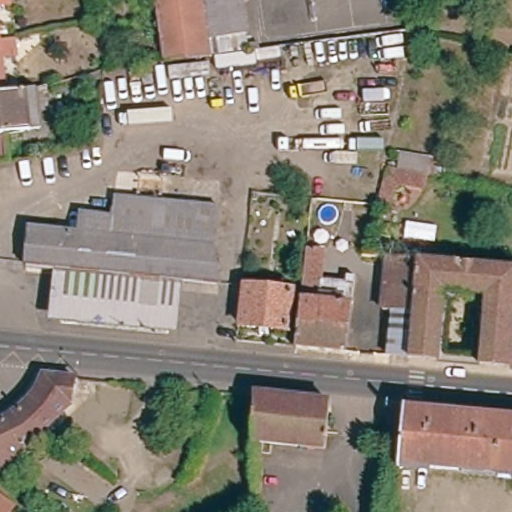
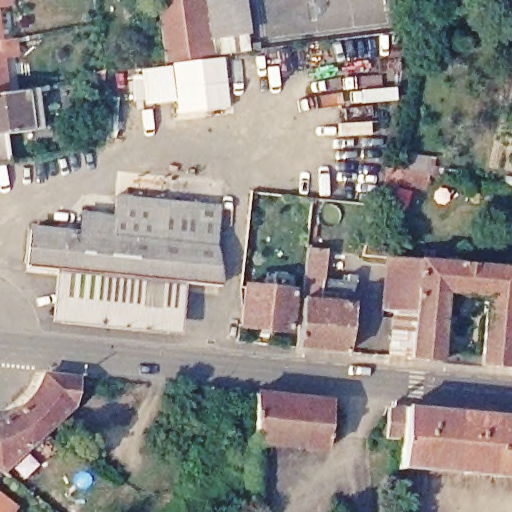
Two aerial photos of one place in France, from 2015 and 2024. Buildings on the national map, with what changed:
unchanged [(14,4),(0,6),(0,0),(13,0),(14,4)]
unchanged [(212,40),(213,56),(167,62),(159,0),(206,0),(212,40)]
unchanged [(248,34),(250,52),(213,56),(212,40),(206,0),(210,0),(246,0),(251,34),(248,34)]
unchanged [(0,42),(0,14),(4,41),(0,42)]
unchanged [(20,39),(22,55),(6,57),(11,91),(0,93),(0,42),(4,41),(20,39)]
new [(229,108),(178,114),(176,100),(145,105),(145,101),(134,103),(129,80),(141,79),(141,70),(172,65),(224,58),(229,108)]
demolished [(210,58),(212,94),(150,99),(169,64),(210,58)]
unchanged [(41,129),(6,135),(9,165),(0,166),(0,93),(11,91),(35,89),(41,129)]
unchanged [(407,187),(401,216),(382,211),(389,161),(403,162),(406,151),(442,157),(434,190),(407,187)]
unchanged [(30,266),(34,229),(83,233),(85,214),(117,217),(119,196),(222,206),(218,245),(224,285),(188,280),(59,268),(30,266)]
unchanged [(298,346),(301,333),(305,290),(310,249),(328,251),(326,283),(358,286),(355,306),(351,352),(298,346)]
unchanged [(385,308),(388,257),(421,261),(417,311),(385,308)]
unchanged [(484,363),(488,296),(449,292),(442,360),(412,357),(417,311),(421,261),(512,268),(512,365),(484,363)]
unchanged [(182,333),(53,323),(59,268),(188,280),(182,333)]
unchanged [(242,326),(247,285),(305,290),(301,333),(242,326)]
unchanged [(375,308),(375,317),(387,319),(387,342),(398,343),(398,356),(351,352),(355,306),(375,308)]
unchanged [(34,405),(47,387),(53,376),(84,377),(81,405),(30,452),(9,472),(0,465),(0,424),(17,417),(34,405)]
unchanged [(334,397),(329,445),(256,438),(258,390),(334,397)]
unchanged [(409,438),(396,437),(399,407),(412,408),(512,419),(512,477),(407,466),(409,438)]
unchanged [(17,512),(0,512),(0,490),(21,506),(17,512)]

